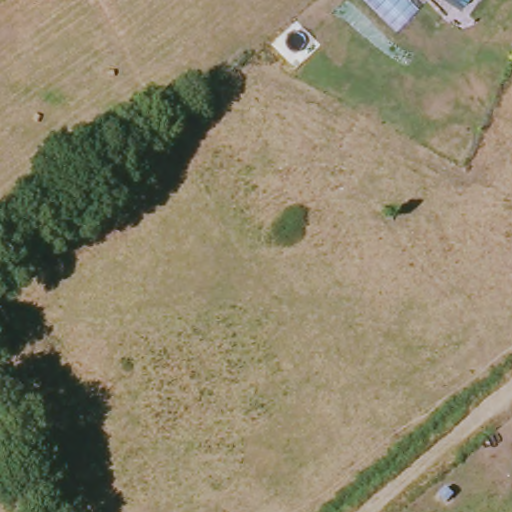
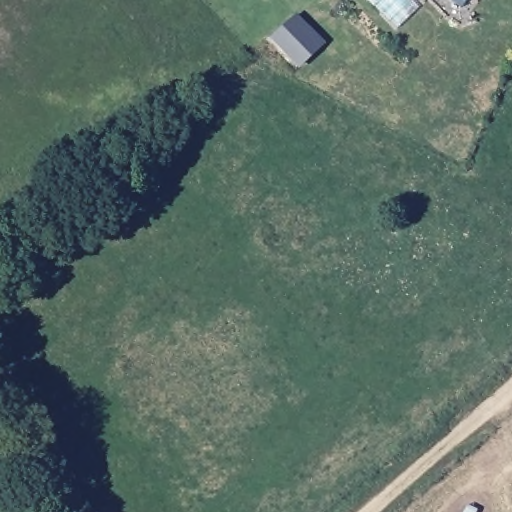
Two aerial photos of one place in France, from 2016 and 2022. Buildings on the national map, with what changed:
new [(295,18),(320,49),(296,68),(271,37),(295,18)]

